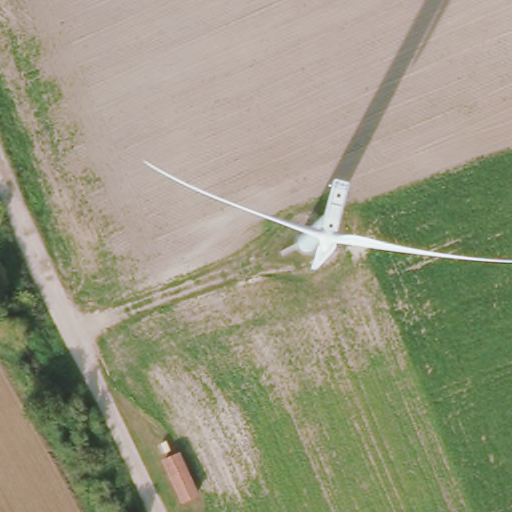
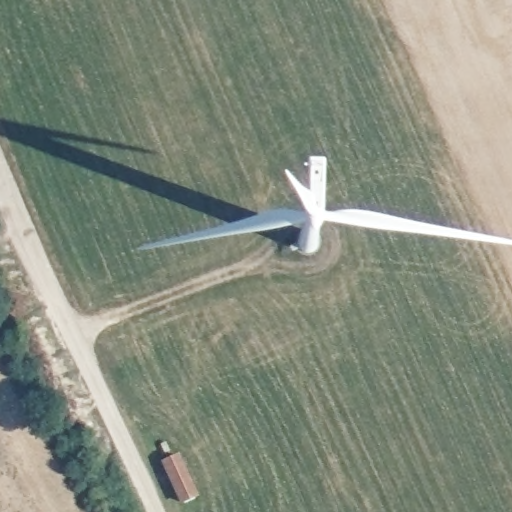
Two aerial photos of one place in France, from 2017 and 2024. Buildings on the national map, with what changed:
unchanged [(178,451),(198,492),(187,498),(167,456),(178,451)]

